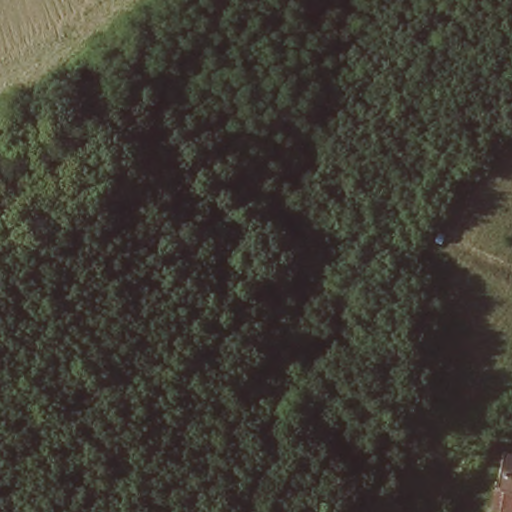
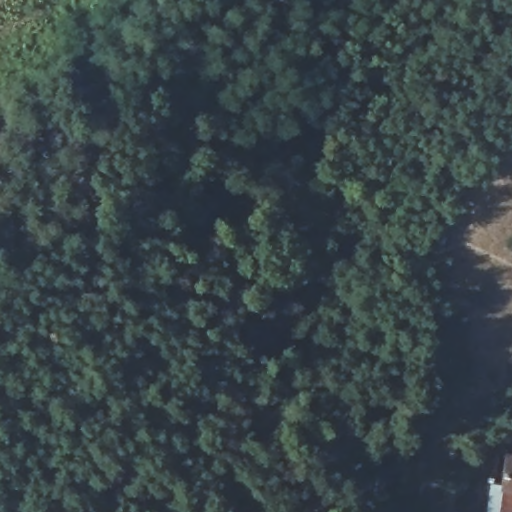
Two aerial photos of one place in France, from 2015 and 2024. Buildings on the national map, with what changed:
unchanged [(506,450),(512,450),(512,512),(498,512),(501,487),(506,450)]

